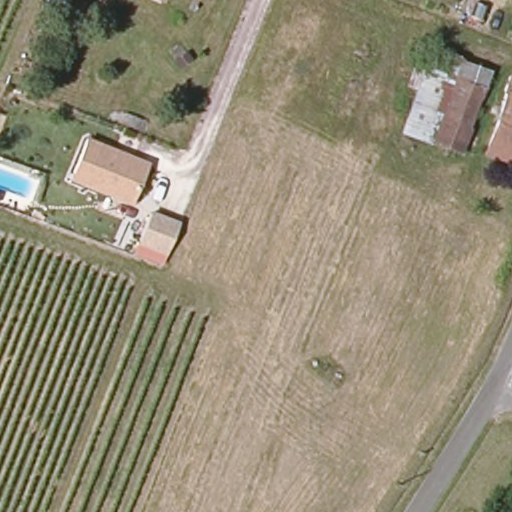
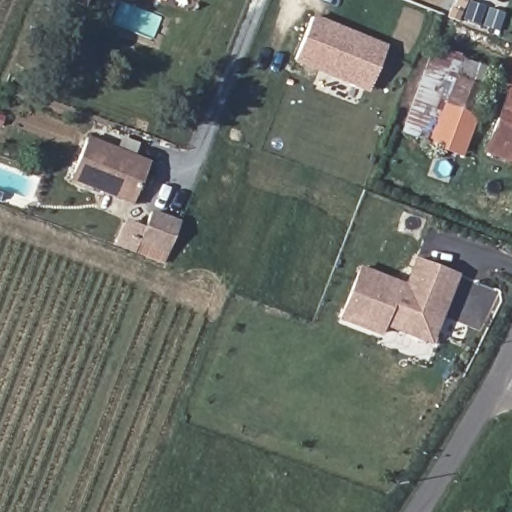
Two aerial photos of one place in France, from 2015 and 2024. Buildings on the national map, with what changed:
new [(370,93),(293,62),(313,15),(389,44),(370,93)]
unchanged [(463,153),(392,126),(396,108),(405,112),(414,86),(403,80),(418,50),(441,58),(447,48),(493,66),(463,153)]
unchanged [(512,78),(512,153),(489,145),(512,78)]
unchanged [(97,143),(147,162),(130,202),(80,183),(69,178),(85,138),(97,143)]
unchanged [(172,227),(160,255),(131,243),(144,215),(172,227)]
new [(432,344),(385,327),(381,336),(338,320),(359,265),(405,282),(415,258),(460,274),(432,344)]

